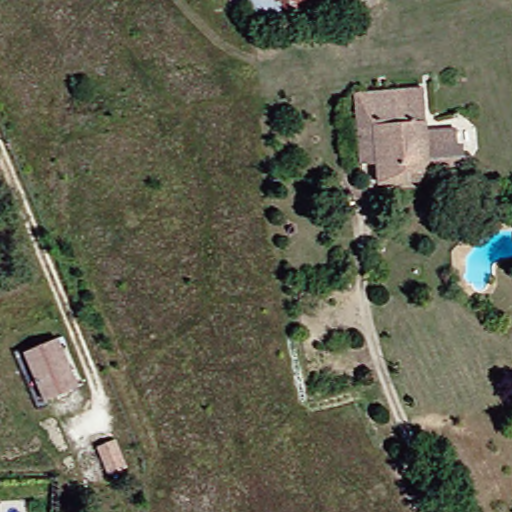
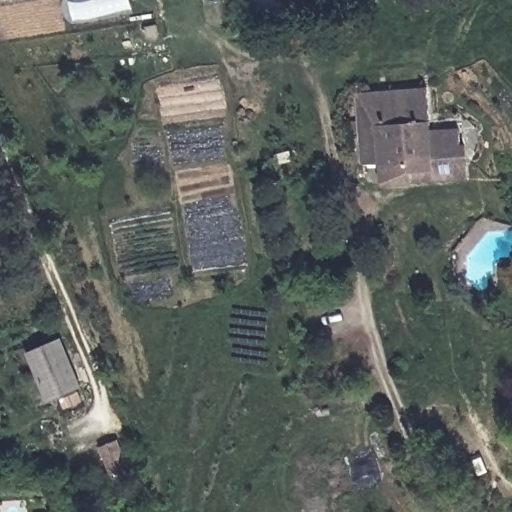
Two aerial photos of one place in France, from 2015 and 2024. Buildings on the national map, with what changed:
new [(0,1),(0,0),(3,0),(0,1)]
new [(70,25),(67,0),(130,0),(132,12),(70,25)]
unchanged [(305,19),(250,24),(247,0),(303,0),(305,19)]
unchanged [(325,11),(308,13),(306,0),(324,0),(325,11)]
unchanged [(360,2),(339,4),(339,0),(360,0),(360,2)]
unchanged [(423,93),(425,136),(459,136),(460,172),(411,177),(412,190),(388,192),(388,169),(357,170),(354,98),(423,93)]
unchanged [(59,338),(83,387),(50,402),(27,355),(59,338)]
unchanged [(115,438),(128,466),(111,472),(99,446),(115,438)]

